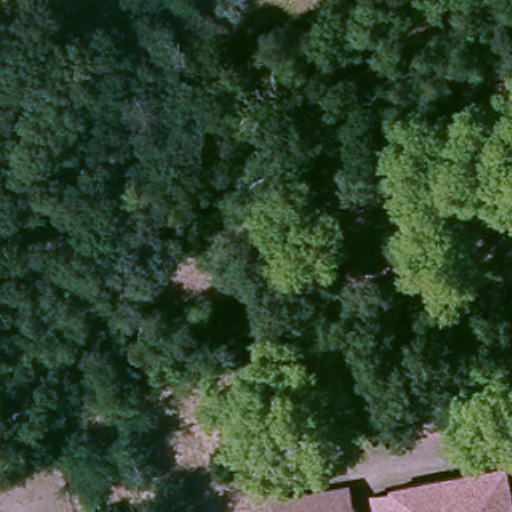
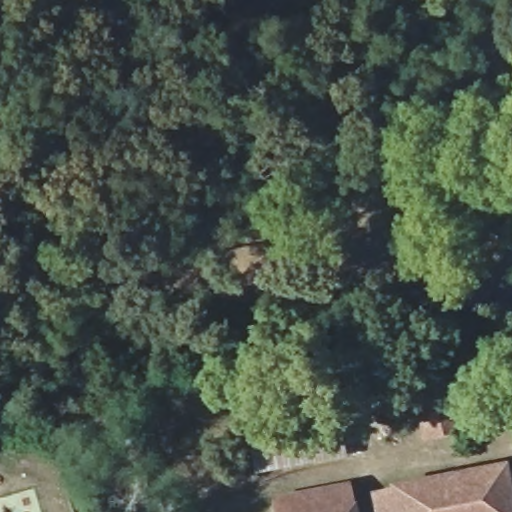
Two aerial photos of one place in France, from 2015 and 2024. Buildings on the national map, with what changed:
unchanged [(427,441),(417,396),(447,390),(456,435),(427,441)]
unchanged [(251,445),(340,428),(345,452),(256,469),(251,445)]
unchanged [(46,462),(47,471),(38,474),(41,481),(21,487),(16,471),(46,462)]
unchanged [(512,463),(512,491),(506,464),(512,463)]
unchanged [(375,512),(371,494),(392,490),(391,486),(506,464),(512,491),(512,512),(375,512)]
unchanged [(276,512),(273,498),(349,482),(353,502),(307,512),(276,512)]
unchanged [(359,512),(307,512),(353,502),(357,501),(359,512)]

